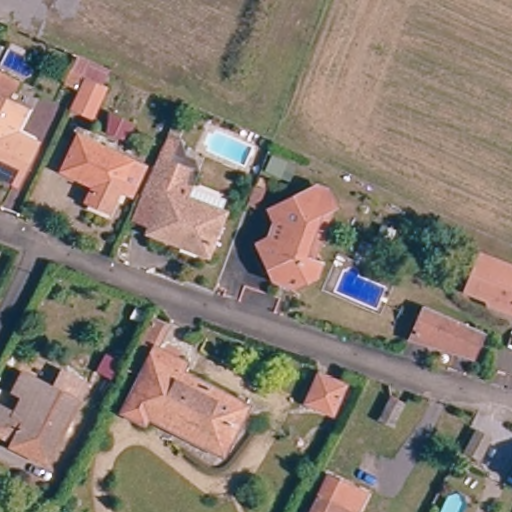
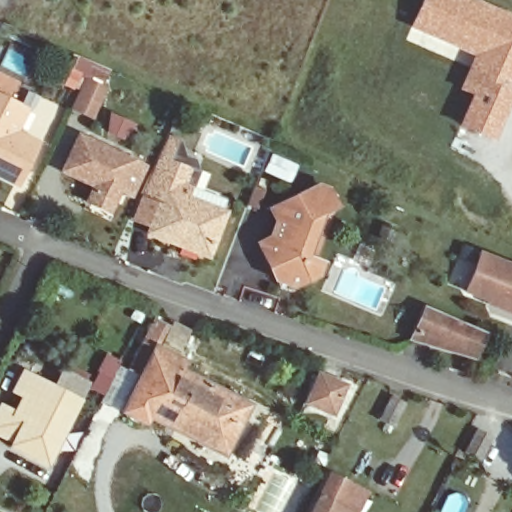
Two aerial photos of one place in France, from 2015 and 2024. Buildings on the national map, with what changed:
new [(480,0),(502,9),(511,15),(512,16),(512,88),(511,92),(491,142),(456,126),(468,95),(456,90),(471,56),(407,28),(419,0),(480,0)]
unchanged [(12,95),(0,90),(0,79),(1,77),(17,85),(12,95)]
unchanged [(88,116),(71,109),(84,79),(101,86),(88,116)]
unchanged [(18,103),(30,109),(18,132),(39,142),(20,182),(0,173),(0,94),(18,103)]
unchanged [(139,199),(125,192),(112,218),(92,208),(100,192),(69,178),(85,146),(149,176),(139,199)]
unchanged [(147,199),(161,166),(169,148),(186,154),(182,166),(199,173),(196,180),(191,192),(231,208),(226,220),(229,220),(213,261),(157,239),(161,230),(137,221),(138,219),(147,199)]
unchanged [(256,205),(247,202),(253,184),(263,187),(256,205)]
unchanged [(323,265),(323,272),(317,278),(310,281),(298,286),(288,285),(282,282),(266,247),(273,244),(284,215),(280,208),(320,188),(331,191),(335,195),(338,201),(340,207),(335,217),(317,263),(323,265)]
unchanged [(480,250),(512,263),(512,307),(465,288),(480,250)]
unchanged [(472,361),(456,354),(415,338),(427,310),(467,326),(483,333),(472,361)]
unchanged [(254,400),(233,442),(188,419),(185,424),(155,409),(152,416),(132,406),(147,374),(132,367),(157,319),(172,326),(162,344),(192,359),(188,367),(254,400)]
unchanged [(51,453),(22,438),(19,443),(0,434),(0,414),(4,407),(17,414),(27,394),(17,388),(25,373),(80,400),(51,453)]
unchanged [(327,409),(305,398),(317,374),(341,386),(327,409)]
unchanged [(387,434),(377,429),(387,408),(398,413),(387,434)]
demolished [(462,459),(451,454),(461,432),(472,436),(462,459)]
unchanged [(481,462),(469,457),(479,434),(491,439),(481,462)]
unchanged [(346,493),(359,499),(353,512),(309,512),(323,483),(346,493)]

